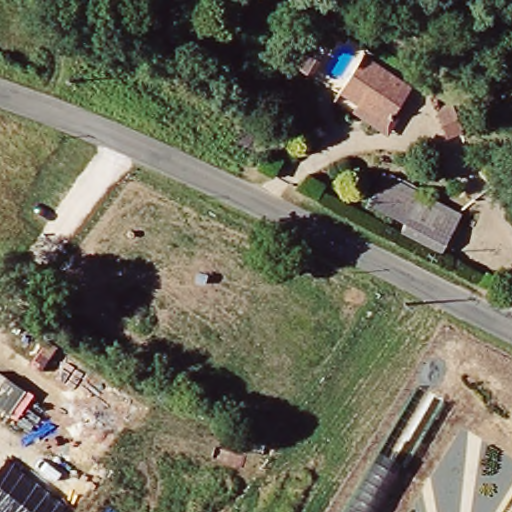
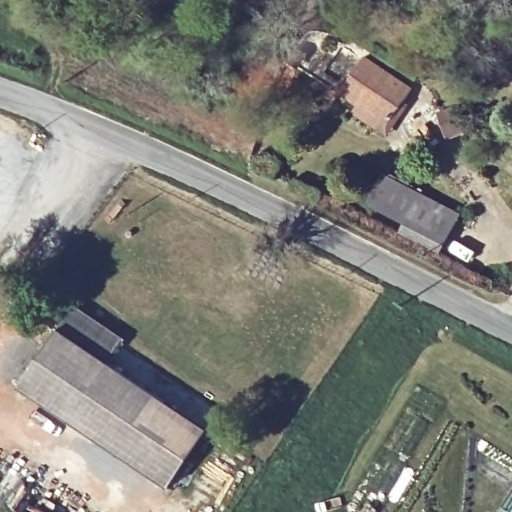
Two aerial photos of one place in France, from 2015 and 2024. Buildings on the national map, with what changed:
unchanged [(397,124),(393,131),(362,115),(367,109),(338,94),(357,58),(411,85),(404,98),(408,100),(397,124)]
unchanged [(465,113),(468,119),(459,124),(455,126),(443,104),(457,97),(465,113)]
unchanged [(388,173),(462,217),(442,252),(367,209),(388,173)]
new [(210,431),(170,490),(20,389),(59,330),(210,431)]
demolished [(375,459),(399,474),(378,512),(345,512),(375,459)]

